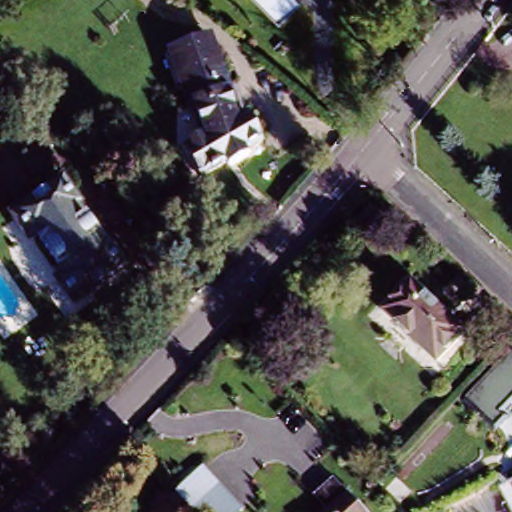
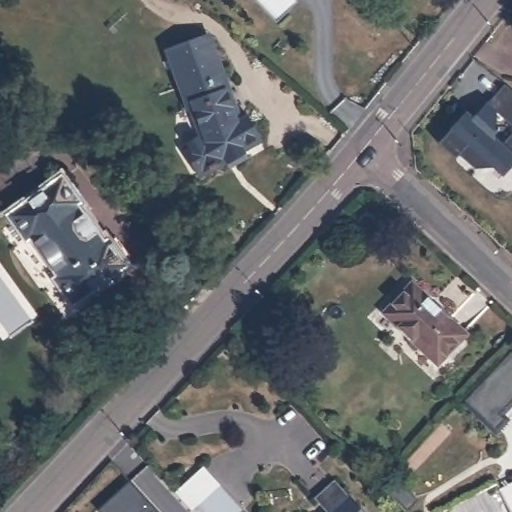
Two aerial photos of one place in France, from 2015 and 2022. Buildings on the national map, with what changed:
unchanged [(280,32),(244,0),(288,0),(300,11),(280,32)]
unchanged [(232,175),(228,170),(226,166),(199,184),(181,154),(204,139),(191,106),(186,107),(162,49),(204,32),(238,118),(246,112),(262,144),(244,154),(247,158),(250,164),(232,175)]
new [(502,177),(491,167),(475,168),(459,154),(455,157),(440,142),(451,131),(450,129),(466,114),(472,119),(489,102),(505,85),(512,92),(512,166),(502,177)]
unchanged [(72,203),(69,205),(97,244),(100,242),(118,266),(68,303),(50,278),(54,275),(26,237),(22,240),(5,217),(55,180),(72,203)]
unchanged [(409,285),(460,332),(435,361),(383,313),(409,285)]
unchanged [(502,412),(507,417),(495,429),(465,400),(512,350),(512,402),(502,412)]
unchanged [(217,477),(239,503),(237,506),(242,512),(204,512),(192,500),(217,477)]
new [(129,481),(157,512),(106,512),(101,506),(129,481)]
unchanged [(345,496),(361,512),(328,512),(345,496)]
demolished [(142,507),(147,508),(146,499),(163,500),(171,508),(170,512),(142,512),(142,507)]
new [(97,510),(101,506),(106,512),(98,512),(97,510)]

